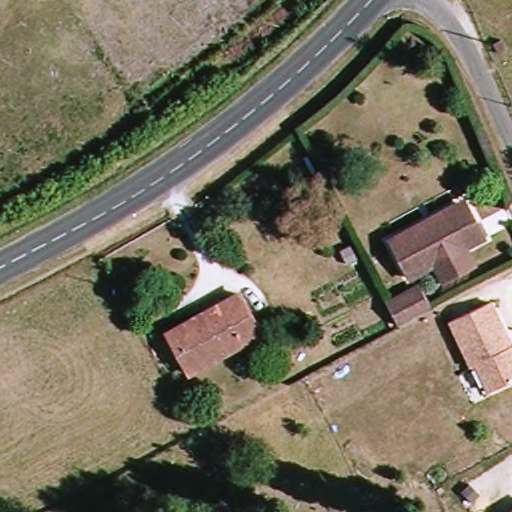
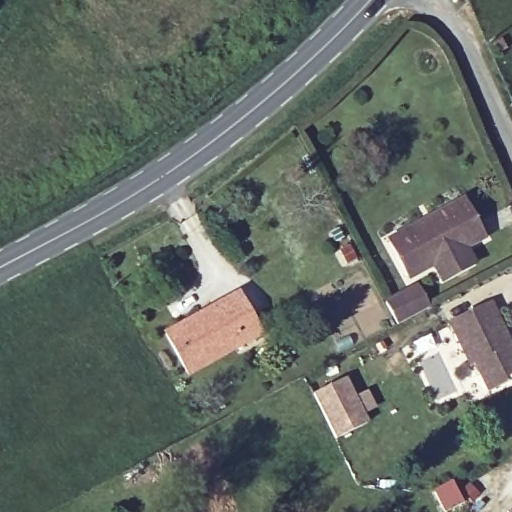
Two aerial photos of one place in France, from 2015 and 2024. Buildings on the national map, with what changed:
unchanged [(477,264),(444,281),(438,268),(414,281),(394,244),(431,224),(470,204),(472,209),(489,241),(470,251),(473,255),(477,264)]
unchanged [(436,308),(405,324),(394,303),(425,287),(436,308)]
unchanged [(197,378),(171,331),(245,291),(270,339),(197,378)]
unchanged [(475,366),(469,368),(446,323),(493,300),(512,338),(512,380),(488,391),(475,366)]
new [(356,397),(368,391),(377,408),(365,414),(369,423),(336,439),(313,394),(346,378),(356,397)]
unchanged [(512,511),(512,512),(511,512),(512,511)]

